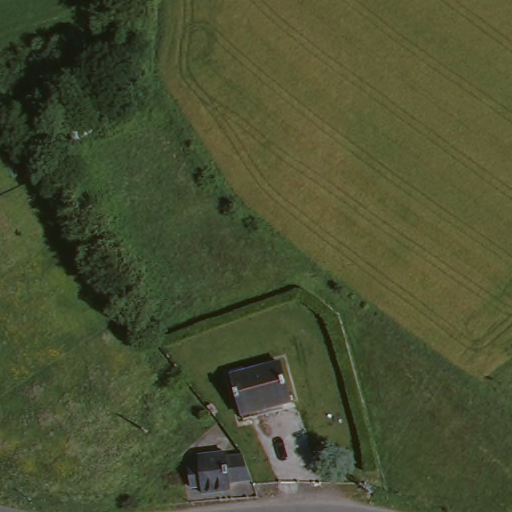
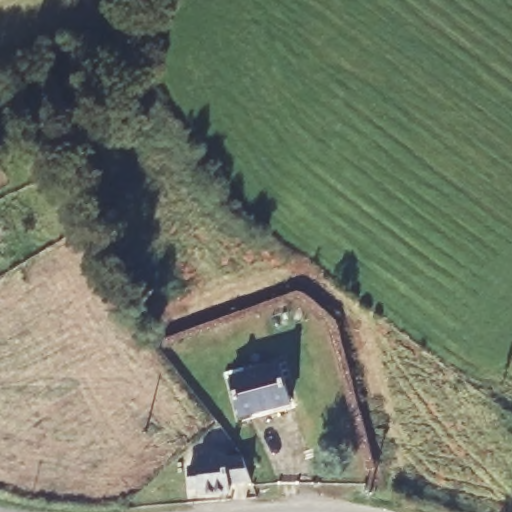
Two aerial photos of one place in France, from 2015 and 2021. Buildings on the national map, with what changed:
unchanged [(271,364),(283,401),(241,415),(229,379),(271,364)]
unchanged [(260,487),(225,491),(225,500),(200,502),(200,493),(190,494),(188,474),(200,473),(199,465),(240,461),(260,487)]

